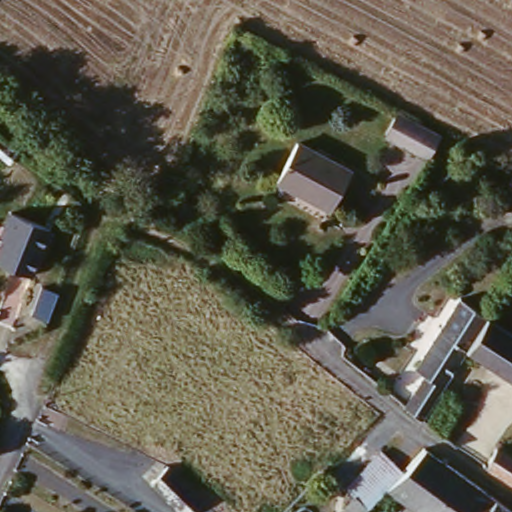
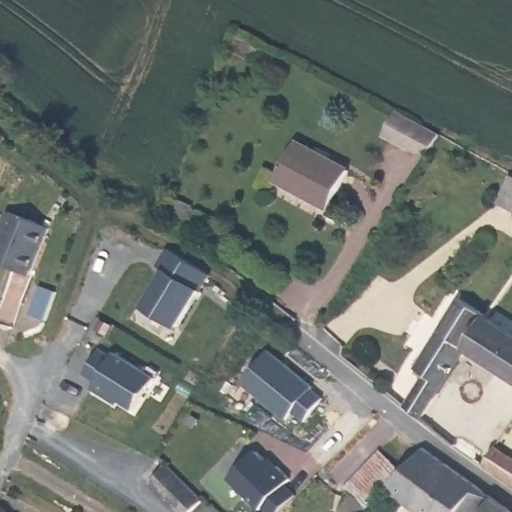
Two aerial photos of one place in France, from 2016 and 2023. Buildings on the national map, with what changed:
unchanged [(403,143),(391,135),(405,111),(418,118),(446,135),(431,159),(403,143)]
unchanged [(352,168),(329,206),(275,174),(296,137),(352,168)]
unchanged [(503,199),(512,184),(512,204),(503,199)]
unchanged [(0,257),(13,228),(10,227),(17,211),(57,228),(35,274),(0,259),(0,257)]
new [(174,267),(206,287),(183,325),(149,304),(174,267)]
unchanged [(431,368),(423,360),(455,319),(479,292),(508,317),(487,348),(482,344),(425,412),(407,397),(431,368)]
unchanged [(512,320),(512,369),(487,348),(508,317),(512,320)]
new [(112,357),(115,352),(156,376),(135,410),(120,402),(118,406),(91,389),(97,381),(83,373),(98,347),(112,357)]
new [(268,352),(315,389),(291,418),(245,380),(268,352)]
unchanged [(467,501),(461,510),(464,512),(413,512),(383,490),(402,471),(414,459),(426,448),(433,453),(448,463),(435,478),(467,501)]
unchanged [(512,457),(512,479),(490,465),(499,449),(512,457)]
new [(279,467),(282,464),(295,478),(290,483),(300,493),(283,512),(274,512),(268,506),(266,509),(235,477),(261,452),(279,467)]
unchanged [(383,452),(402,471),(383,490),(366,508),(346,488),(383,452)]
unchanged [(485,512),(464,512),(461,510),(467,501),(435,478),(448,463),(496,497),(485,512)]
unchanged [(203,512),(182,512),(156,488),(176,468),(213,501),(203,512)]
unchanged [(512,509),(512,512),(485,512),(496,497),(512,509)]
unchanged [(357,502),(362,506),(358,510),(353,505),(357,502)]

